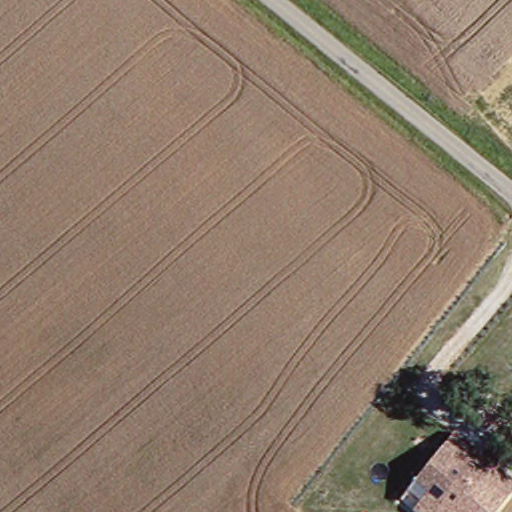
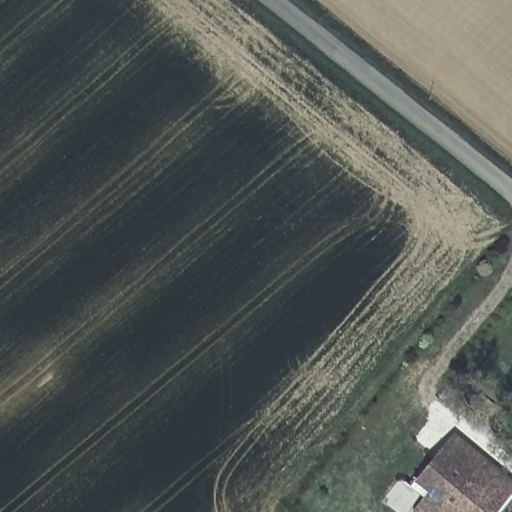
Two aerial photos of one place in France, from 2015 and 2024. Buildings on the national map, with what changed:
unchanged [(457,433),(512,480),(512,499),(502,512),(415,512),(402,502),(457,433)]

